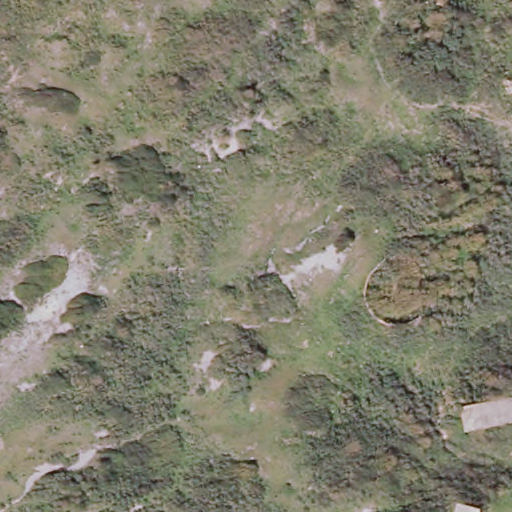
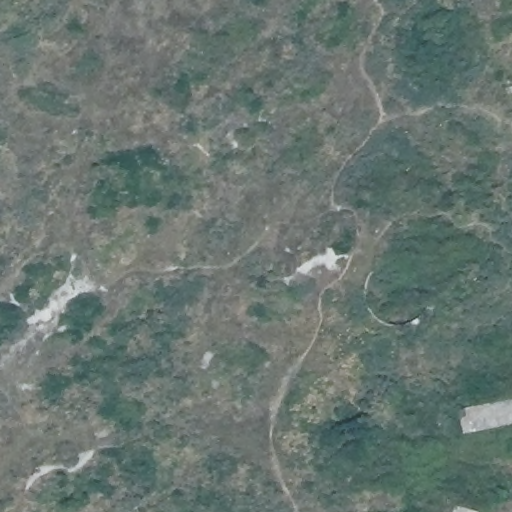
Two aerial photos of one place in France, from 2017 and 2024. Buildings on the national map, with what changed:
unchanged [(460,414),(512,406),(512,433),(467,440),(460,414)]
unchanged [(457,510),(464,512),(457,512),(457,510)]

